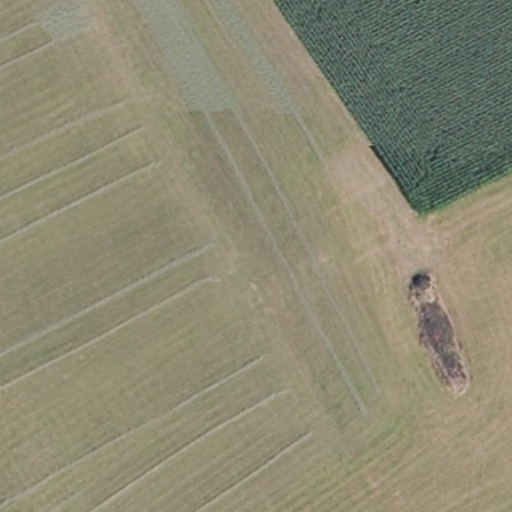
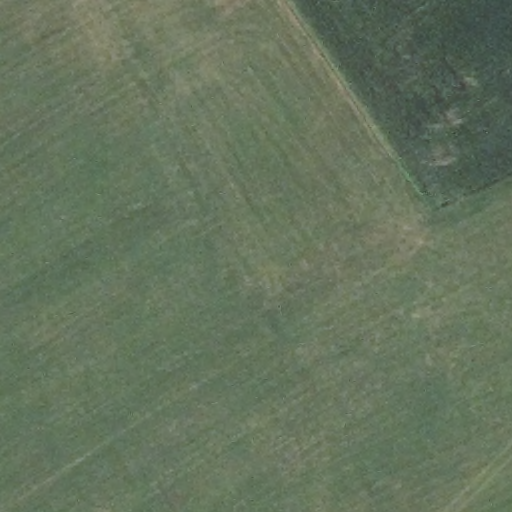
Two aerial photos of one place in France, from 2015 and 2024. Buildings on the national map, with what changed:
[]

